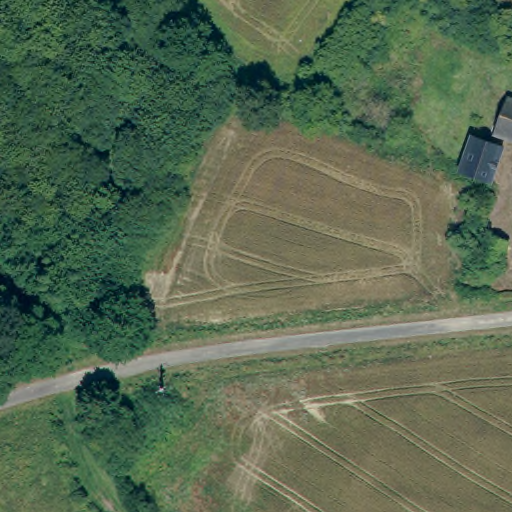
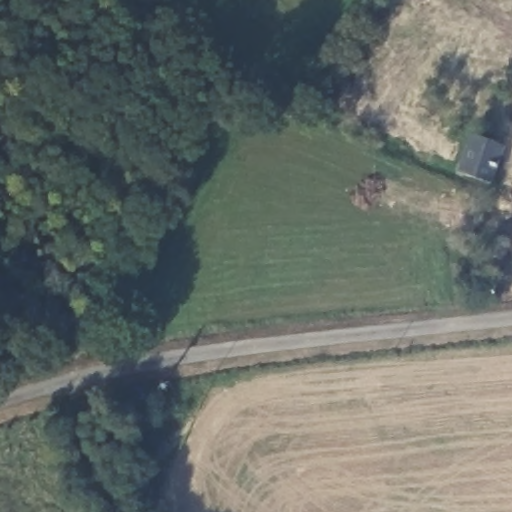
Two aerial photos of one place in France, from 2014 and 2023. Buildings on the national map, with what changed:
unchanged [(512,108),(512,139),(501,136),(512,108)]
unchanged [(507,151),(495,189),(465,178),(477,141),(496,147),(507,151)]
unchanged [(512,247),(507,258),(484,249),(490,232),(512,241),(512,247)]

